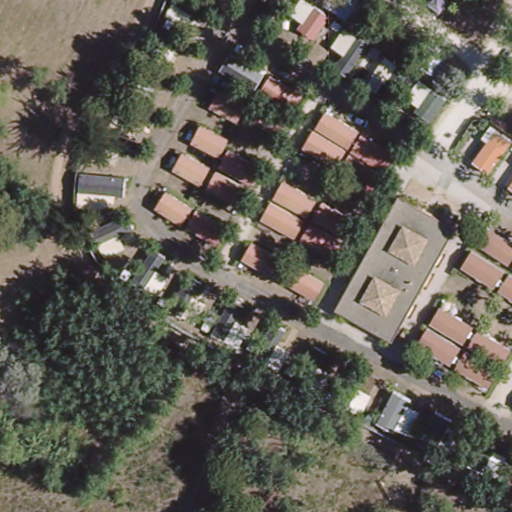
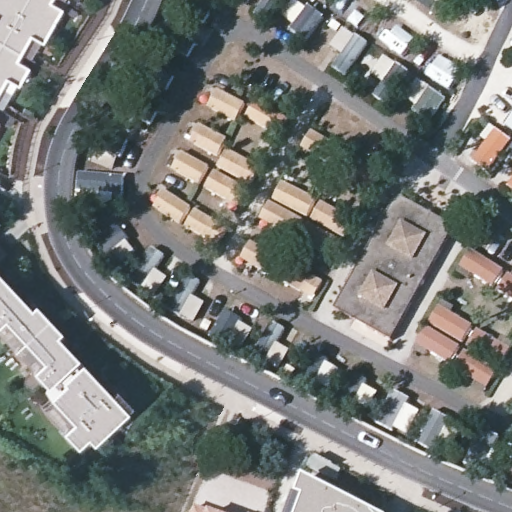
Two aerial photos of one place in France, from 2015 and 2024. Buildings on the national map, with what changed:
new [(51,0),(63,6),(44,40),(32,34),(19,59),(31,65),(21,84),(9,77),(0,93),(0,0),(51,0)]
new [(1,120),(0,121),(0,119),(1,120)]
unchanged [(395,186),(452,217),(389,331),(332,299),(395,186)]
new [(37,302),(42,298),(65,325),(61,329),(112,388),(108,392),(82,363),(67,376),(69,378),(63,383),(58,377),(79,359),(0,268),(0,259),(37,302)]
new [(79,359),(58,377),(52,382),(42,370),(54,361),(15,315),(3,325),(0,322),(0,268),(79,359)]
new [(63,383),(69,378),(67,376),(82,363),(108,392),(128,416),(98,442),(91,434),(80,444),(65,427),(76,417),(53,391),(63,383)]
new [(305,477),(374,512),(290,512),(305,477)]
new [(212,512),(196,512),(198,507),(212,512)]

